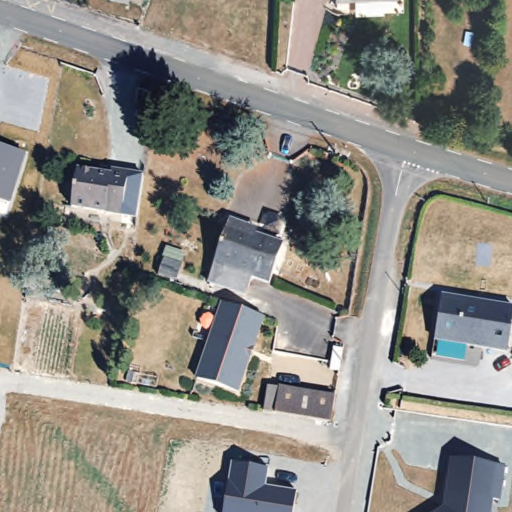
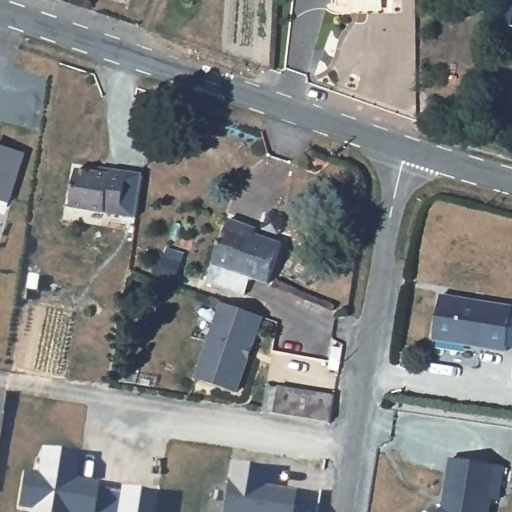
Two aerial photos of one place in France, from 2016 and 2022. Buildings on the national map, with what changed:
unchanged [(120,5),(101,0),(121,0),(120,5)]
unchanged [(10,205),(0,202),(0,146),(24,154),(10,205)]
unchanged [(107,178),(108,172),(125,174),(117,218),(67,210),(72,172),(107,178)]
unchanged [(246,226),(244,232),(278,244),(265,282),(247,277),(241,294),(204,281),(226,219),(246,226)]
unchanged [(511,348),(436,338),(440,300),(441,293),(481,300),(512,305),(512,334),(511,348)]
unchanged [(235,395),(195,380),(223,305),(236,310),(262,319),(235,395)]
unchanged [(328,373),(329,366),(332,351),(342,352),(339,367),(338,375),(328,373)]
unchanged [(334,398),(330,426),(262,413),(267,387),(334,398)]
new [(37,472),(42,447),(81,452),(76,478),(99,482),(98,488),(121,492),(122,487),(157,492),(154,512),(31,512),(31,511),(18,508),(24,470),(37,472)]
unchanged [(449,458),(505,466),(499,500),(492,500),(490,512),(434,512),(441,507),(449,458)]
unchanged [(267,467),(265,488),(297,492),(293,512),(222,512),(230,464),(267,467)]

